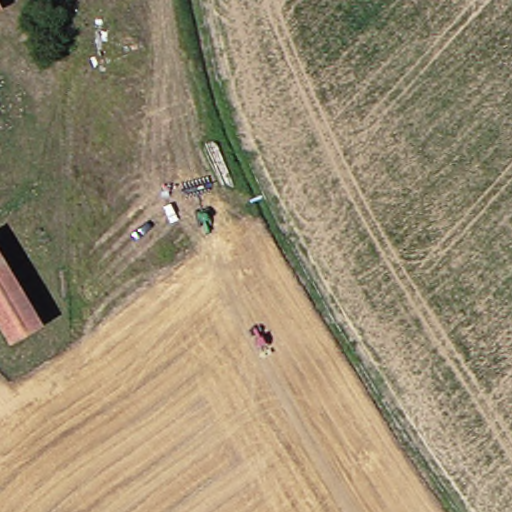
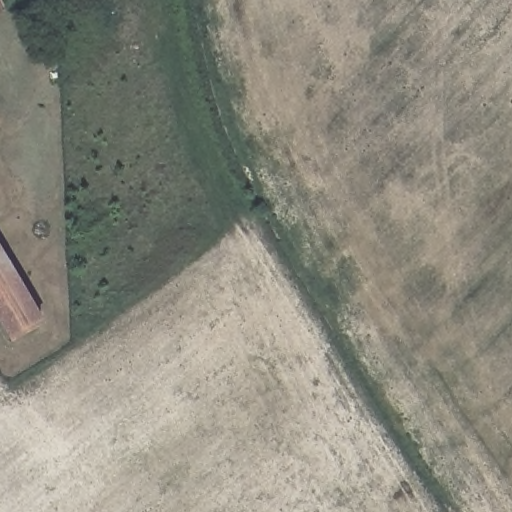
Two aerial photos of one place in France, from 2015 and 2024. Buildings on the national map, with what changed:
unchanged [(6,8),(0,10),(0,0),(2,0),(6,8)]
unchanged [(0,315),(0,237),(1,237),(53,323),(17,344),(0,315)]

